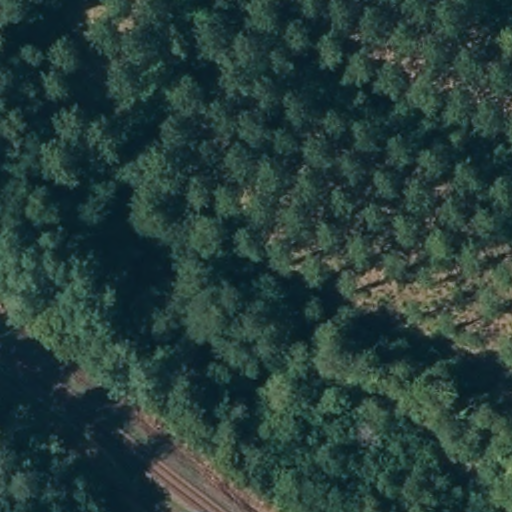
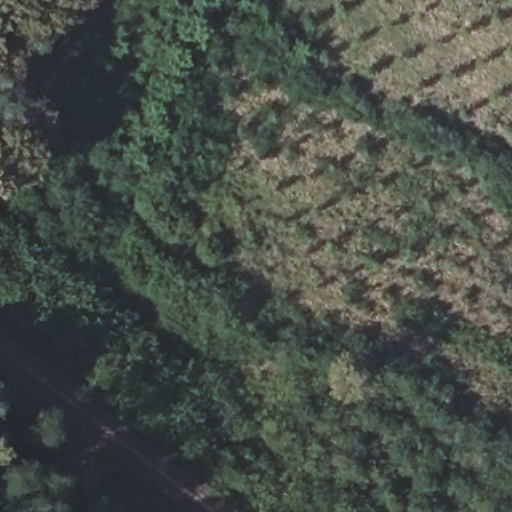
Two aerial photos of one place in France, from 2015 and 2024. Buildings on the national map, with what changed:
[]

